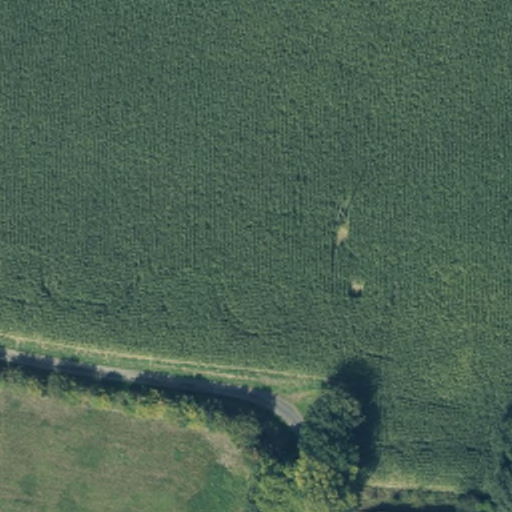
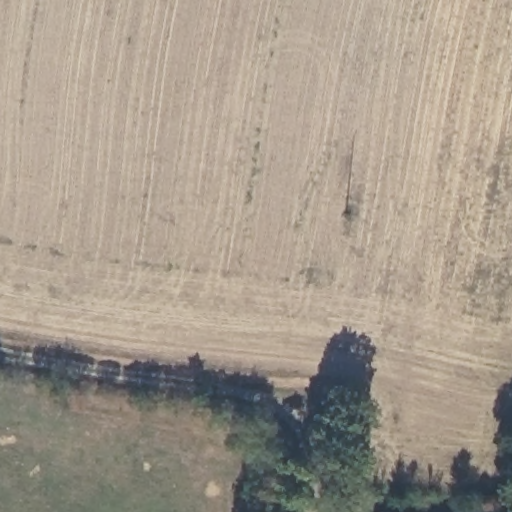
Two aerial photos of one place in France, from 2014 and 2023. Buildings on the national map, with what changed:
unchanged [(369,511),(374,512),(369,512),(369,511)]

